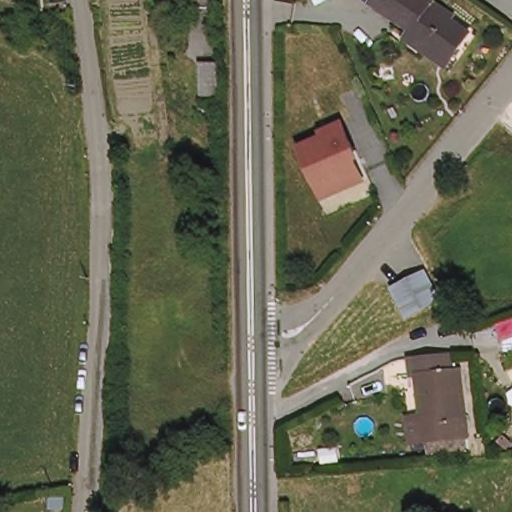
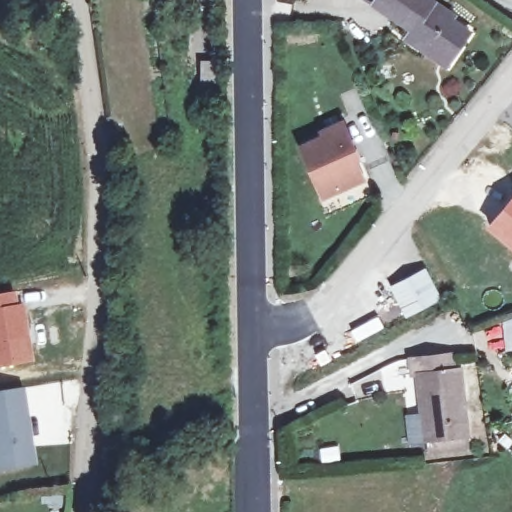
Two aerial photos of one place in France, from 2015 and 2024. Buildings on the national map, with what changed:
unchanged [(422,52),(403,36),(408,29),(372,0),(428,0),(430,1),(426,6),(465,36),(448,58),(442,67),(422,52)]
unchanged [(205,109),(205,76),(222,76),(222,108),(205,109)]
unchanged [(325,140),(322,135),(343,127),(354,154),(350,156),(362,184),(322,200),(302,150),(325,140)]
new [(512,197),(512,249),(486,228),(512,197)]
unchanged [(401,315),(387,285),(422,268),(435,297),(401,315)]
new [(0,367),(0,294),(14,291),(17,306),(23,306),(33,362),(0,367)]
unchanged [(457,373),(462,438),(419,442),(415,375),(408,376),(407,359),(448,356),(450,373),(457,373)]
new [(0,391),(23,387),(37,464),(0,471),(0,391)]

